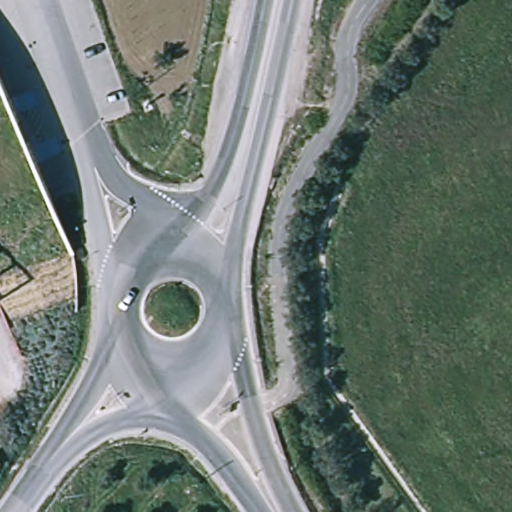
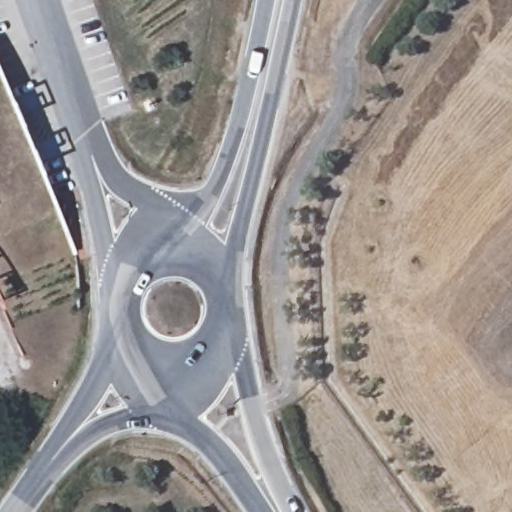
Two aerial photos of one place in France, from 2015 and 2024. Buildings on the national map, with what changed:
unchanged [(0,295),(0,65),(81,258),(0,295)]

